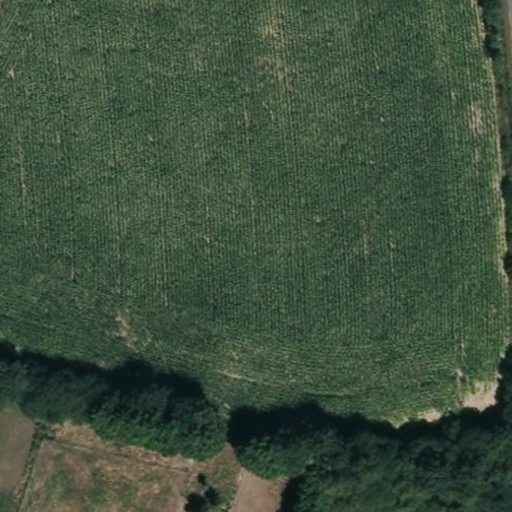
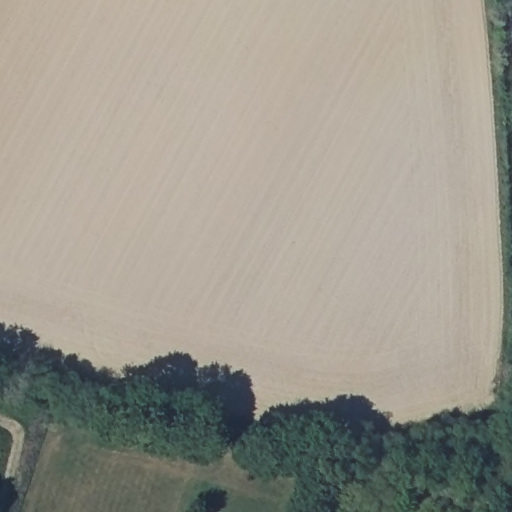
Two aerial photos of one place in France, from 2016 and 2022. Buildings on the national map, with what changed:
[]

